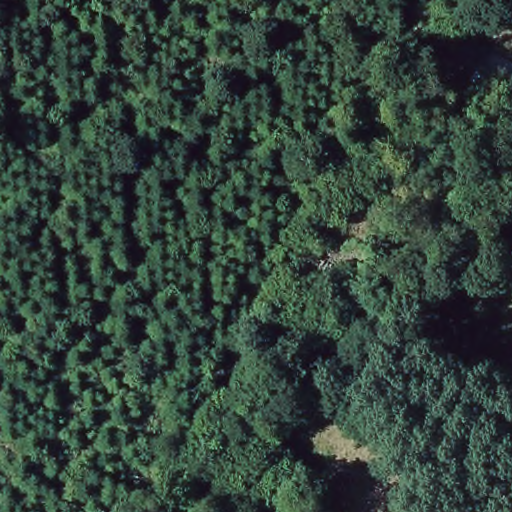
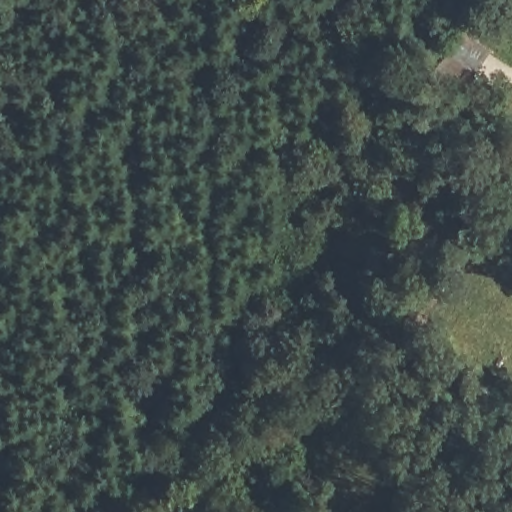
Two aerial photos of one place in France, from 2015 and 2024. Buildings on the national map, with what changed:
unchanged [(471,79),(450,101),(426,74),(448,52),(471,79)]

